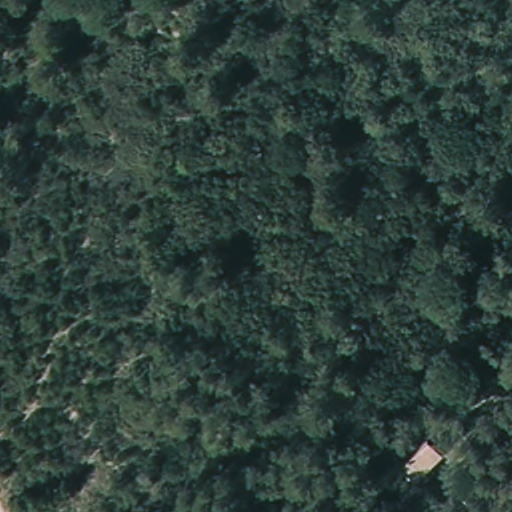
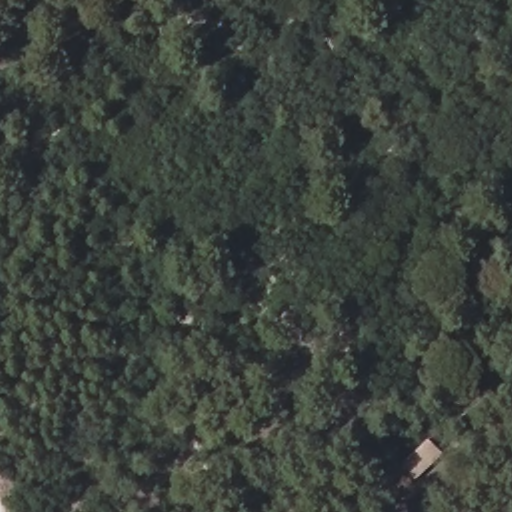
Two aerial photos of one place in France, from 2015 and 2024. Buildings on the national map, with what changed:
unchanged [(430,446),(444,462),(416,487),(400,468),(430,446)]

